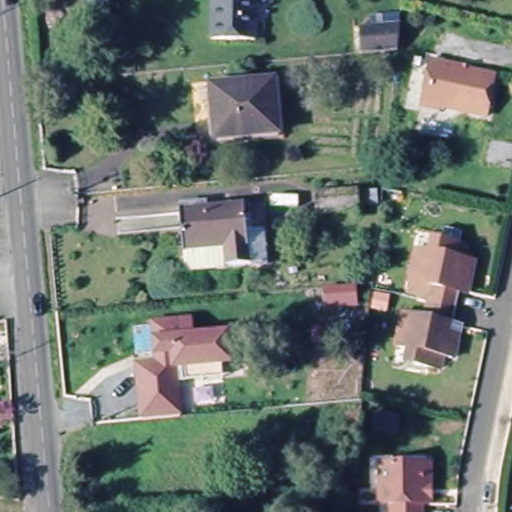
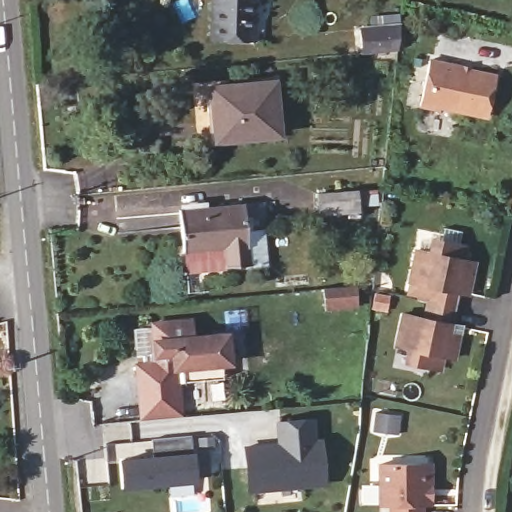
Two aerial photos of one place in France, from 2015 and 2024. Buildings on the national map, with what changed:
unchanged [(256,45),(213,44),(213,0),(256,0),(256,45)]
unchanged [(355,30),(397,26),(394,54),(358,57),(355,30)]
unchanged [(430,55),(461,61),(461,65),(496,72),(487,110),(440,100),(439,104),(420,100),(430,55)]
unchanged [(274,79),(279,133),(216,139),(211,85),(274,79)]
unchanged [(364,212),(319,214),(317,192),(363,189),(364,212)]
unchanged [(255,263),(255,262),(249,262),(185,268),(179,208),(243,203),(246,230),(263,228),(266,262),(255,263)]
unchanged [(464,290),(461,305),(430,298),(420,296),(421,292),(410,290),(413,278),(420,246),(432,249),(435,235),(445,237),(448,225),(465,229),(462,242),(469,243),(465,257),(478,260),(473,282),(471,292),(464,290)]
unchanged [(357,303),(330,306),(328,287),(355,285),(357,303)]
unchanged [(401,343),(405,321),(408,311),(427,315),(430,298),(461,305),(457,322),(464,322),(462,333),(457,356),(445,353),(441,367),(419,362),(409,360),(412,346),(401,343)]
unchanged [(180,385),(178,370),(173,370),(177,419),(139,422),(134,368),(155,366),(154,357),(151,356),(131,357),(129,332),(148,330),(148,327),(187,323),(188,341),(224,337),(227,365),(219,366),(220,382),(180,385)]
new [(280,443),(278,422),(313,418),(314,441),(321,440),(325,483),(249,489),(245,446),(280,443)]
new [(154,461),(152,442),(192,438),(194,457),(206,456),(208,477),(196,478),(196,483),(124,490),(122,463),(154,461)]
unchanged [(384,508),(383,468),(429,468),(433,468),(433,507),(429,507),(424,508),(424,512),(393,512),(393,508),(384,508)]

